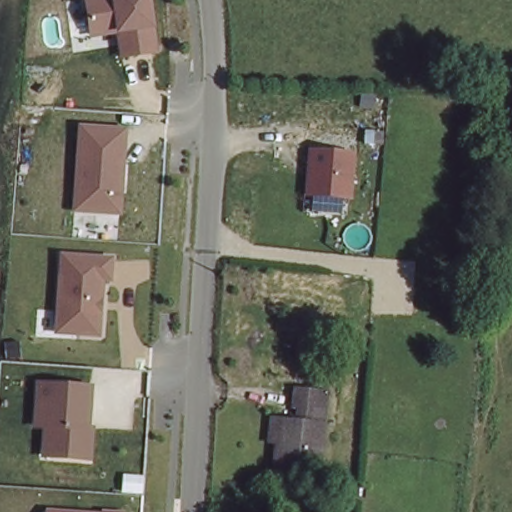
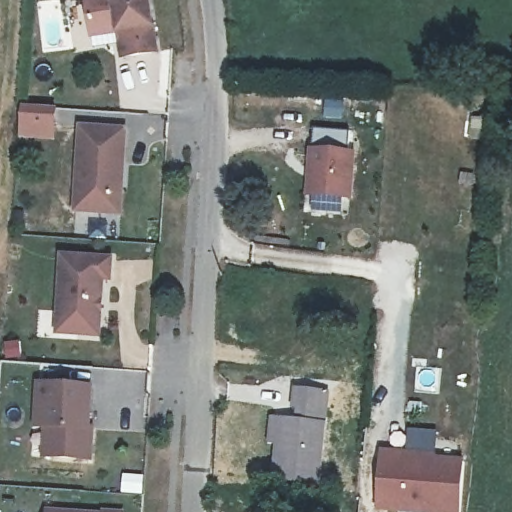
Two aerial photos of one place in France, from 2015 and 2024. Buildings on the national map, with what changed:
unchanged [(116,36),(92,39),(85,0),(152,0),(160,55),(122,61),(116,36)]
new [(51,139),(32,138),(21,137),(24,104),(34,105),(54,106),(51,139)]
unchanged [(122,216),(71,213),(77,124),(126,128),(122,216)]
unchanged [(355,202),(305,199),(310,148),(356,151),(355,202)]
unchanged [(112,282),(104,282),(100,338),(55,336),(59,251),(112,255),(112,282)]
unchanged [(90,425),(94,426),(91,461),(40,459),(42,426),(32,426),(35,378),(92,383),(90,425)]
unchanged [(281,452),(266,451),(270,423),(285,424),(299,426),(300,415),(293,414),(294,392),(328,395),(320,489),(279,483),(281,452)]
new [(459,512),(394,512),(375,511),(380,450),(435,454),(435,457),(464,458),(459,512)]
unchanged [(45,510),(77,512),(45,512),(45,510)]
unchanged [(101,511),(119,512),(101,512),(101,511)]

